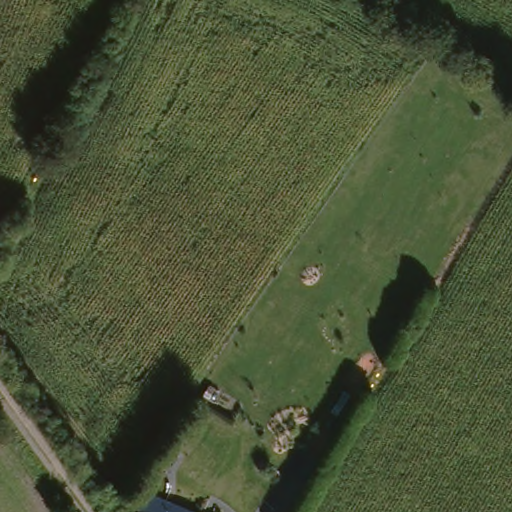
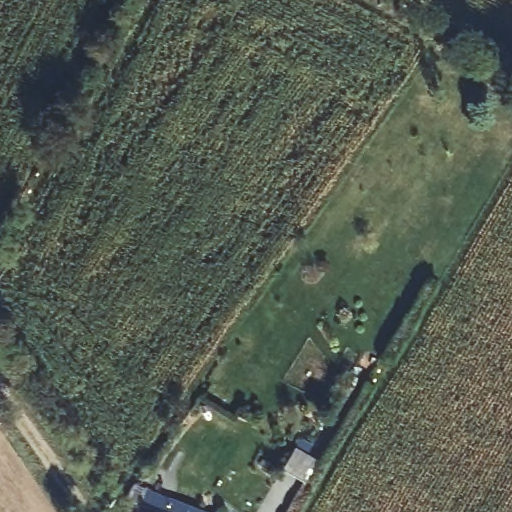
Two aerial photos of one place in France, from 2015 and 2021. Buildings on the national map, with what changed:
unchanged [(188,512),(147,512),(146,512),(152,497),(188,512)]
unchanged [(133,512),(135,507),(146,512),(147,512),(133,512)]

